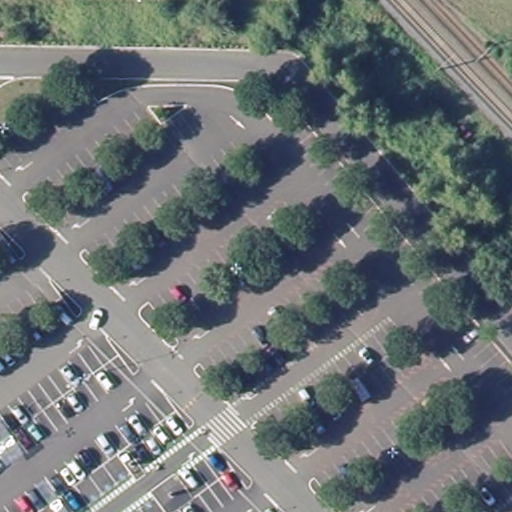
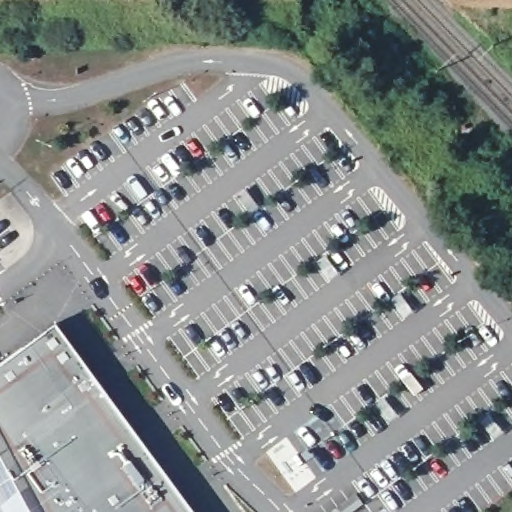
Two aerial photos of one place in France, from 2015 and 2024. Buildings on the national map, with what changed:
new [(0,487),(0,363),(54,327),(191,512),(13,512),(0,487)]
new [(0,487),(13,512),(0,512),(0,487)]

